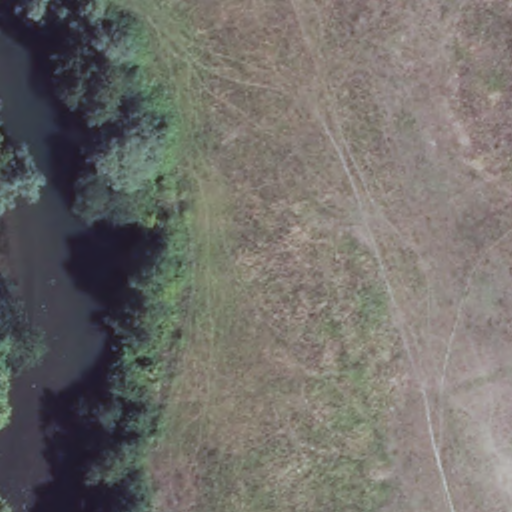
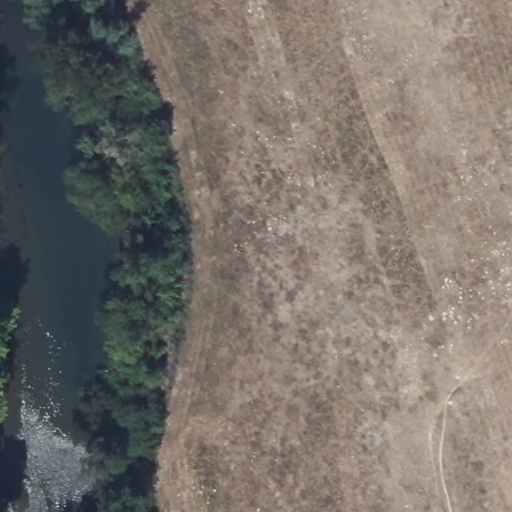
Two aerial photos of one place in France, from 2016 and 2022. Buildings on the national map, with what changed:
[]

